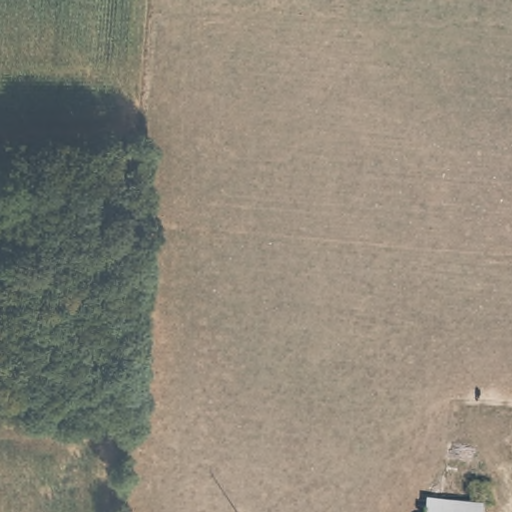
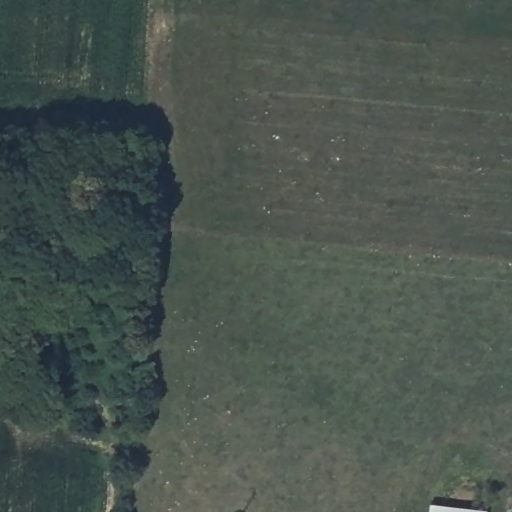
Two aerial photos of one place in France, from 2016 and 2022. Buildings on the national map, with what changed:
unchanged [(492,512),(431,512),(432,494),(493,512),(492,512)]

